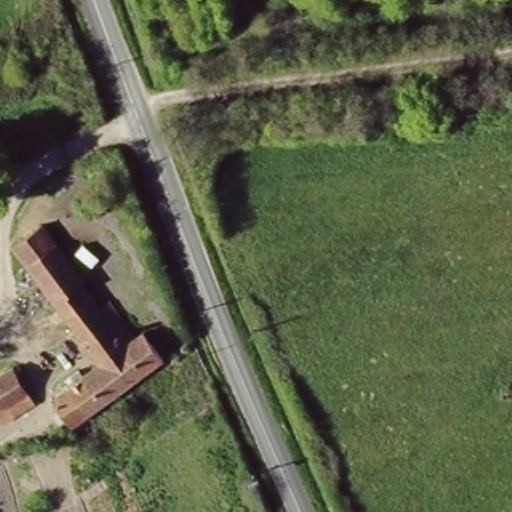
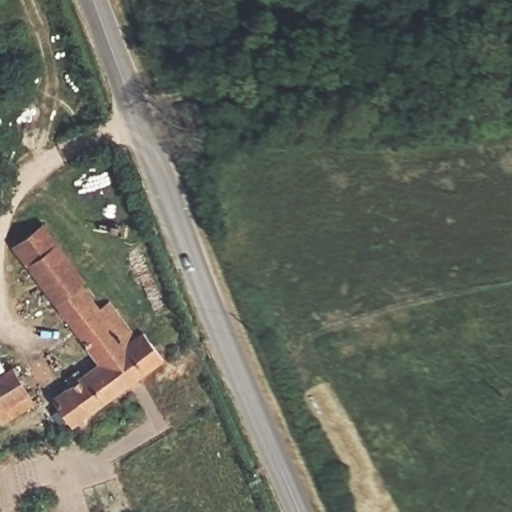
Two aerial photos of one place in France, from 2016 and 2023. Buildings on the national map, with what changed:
unchanged [(101,359),(13,250),(46,225),(84,272),(75,279),(115,325),(120,320),(152,358),(145,362),(152,370),(81,416),(62,390),(101,359)]
unchanged [(0,372),(9,365),(32,393),(0,415),(0,372)]

